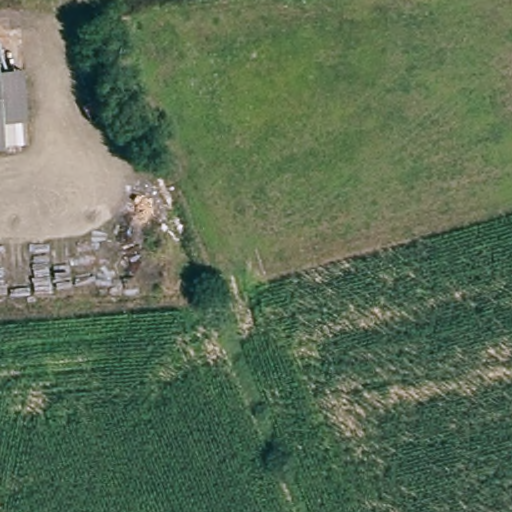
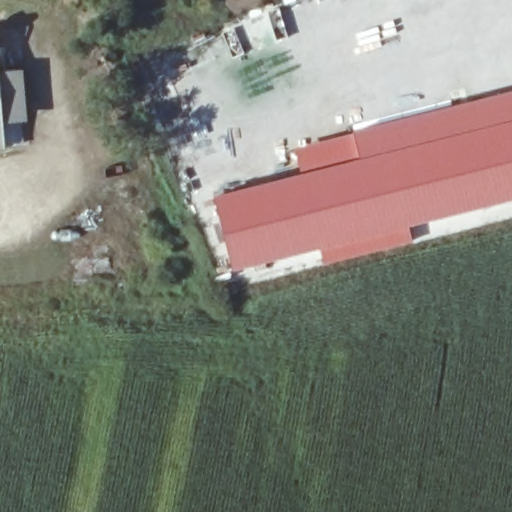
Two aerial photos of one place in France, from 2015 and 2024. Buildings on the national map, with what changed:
new [(300,173),(294,148),(420,111),(495,95),(512,91),(512,201),(450,217),(453,231),(429,236),(425,225),(411,227),(415,241),(322,264),(319,250),(231,271),(213,196),(300,173)]
unchanged [(0,151),(0,101),(4,151),(0,151)]

